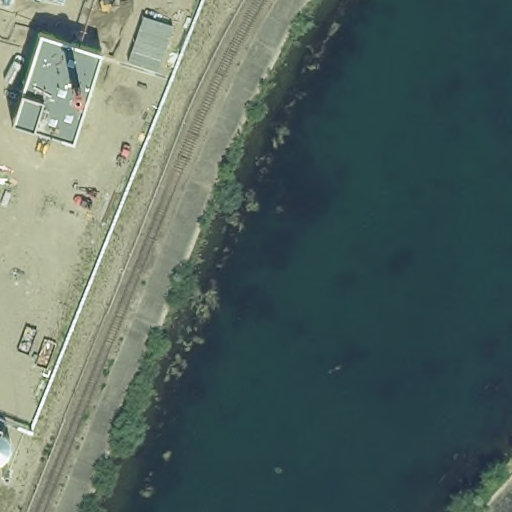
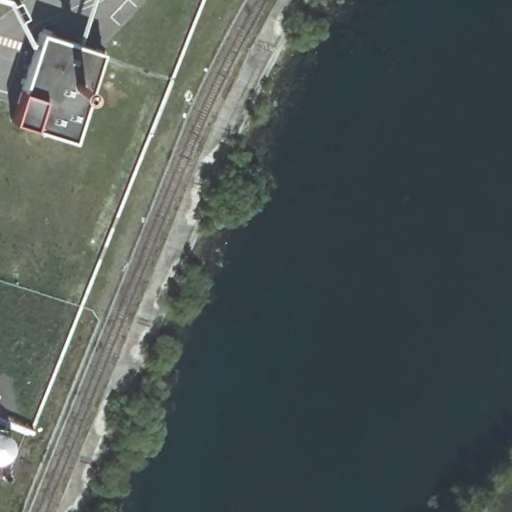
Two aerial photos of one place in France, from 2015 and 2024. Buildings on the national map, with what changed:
unchanged [(51,36),(110,54),(79,145),(23,126),(51,36)]

